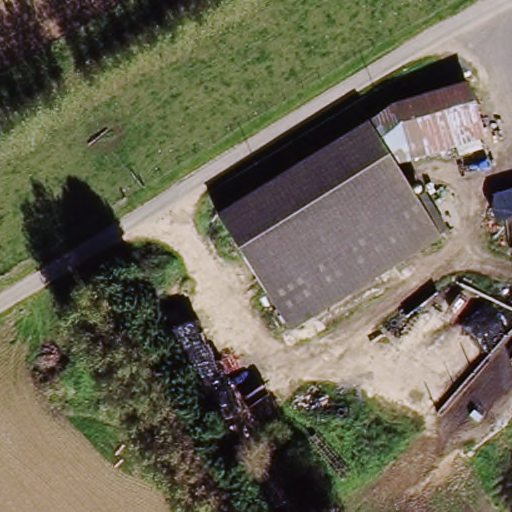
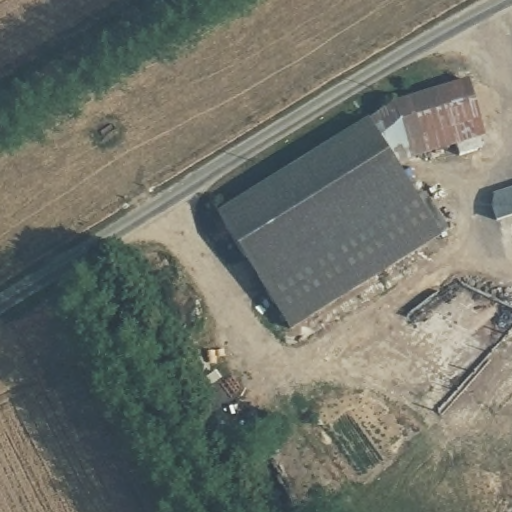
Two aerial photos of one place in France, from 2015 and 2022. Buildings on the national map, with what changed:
unchanged [(394,103),(468,79),(485,136),(395,164),(416,196),(425,191),(450,230),(440,236),(290,330),(217,213),(394,103)]
unchanged [(512,190),(512,217),(497,221),(490,194),(512,190)]

